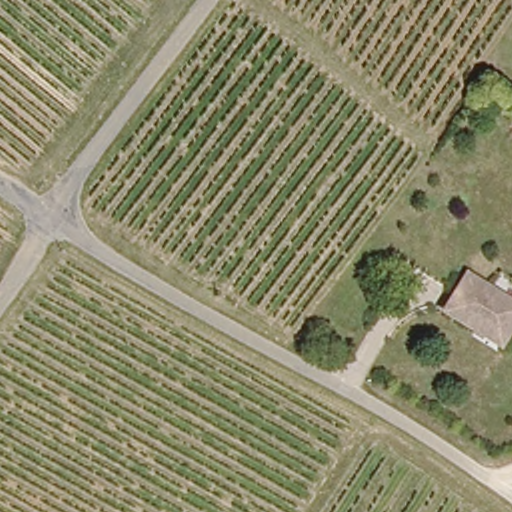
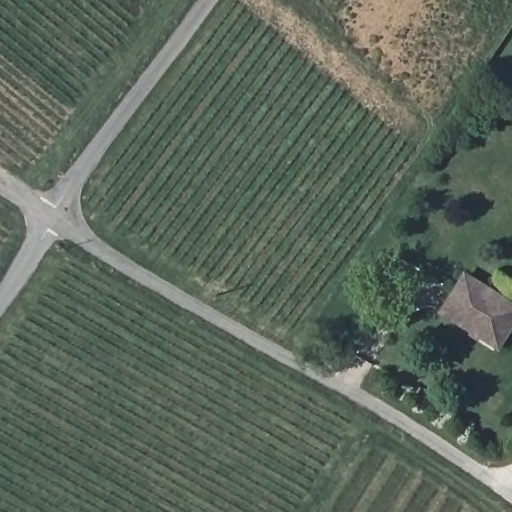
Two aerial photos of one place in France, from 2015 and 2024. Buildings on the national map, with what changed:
unchanged [(512,327),(502,343),(443,307),(465,270),(512,298),(512,327)]

